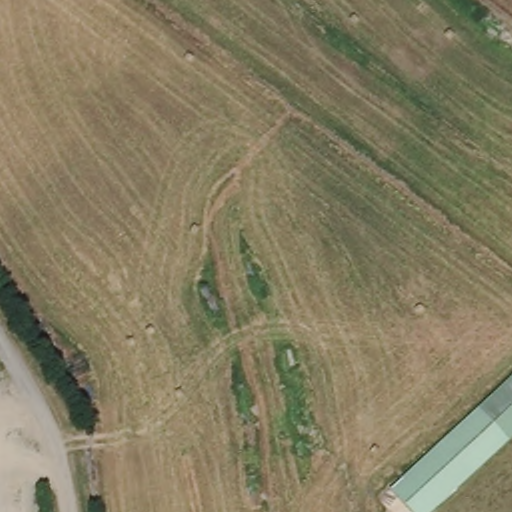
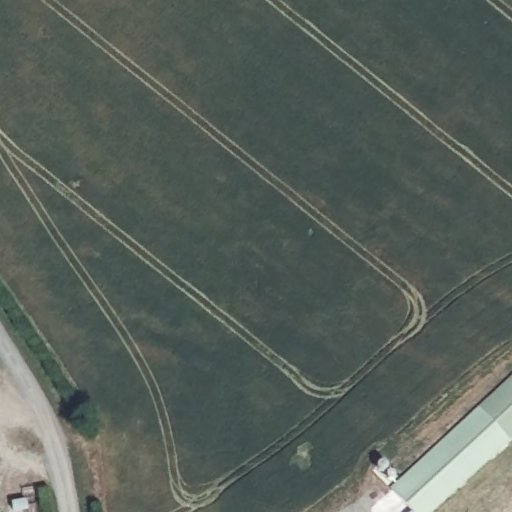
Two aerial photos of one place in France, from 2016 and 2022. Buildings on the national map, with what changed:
unchanged [(512,375),(512,435),(432,512),(407,512),(390,490),(512,375)]

